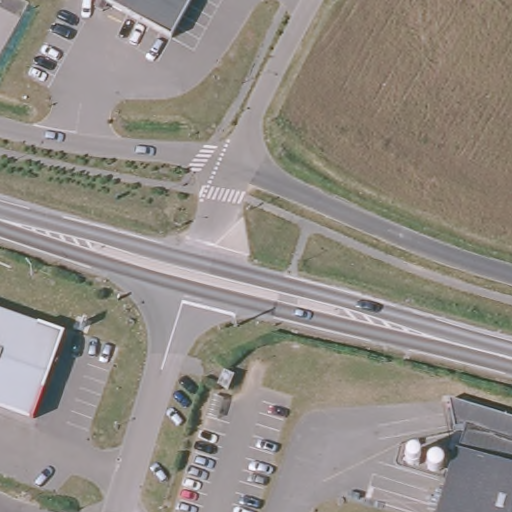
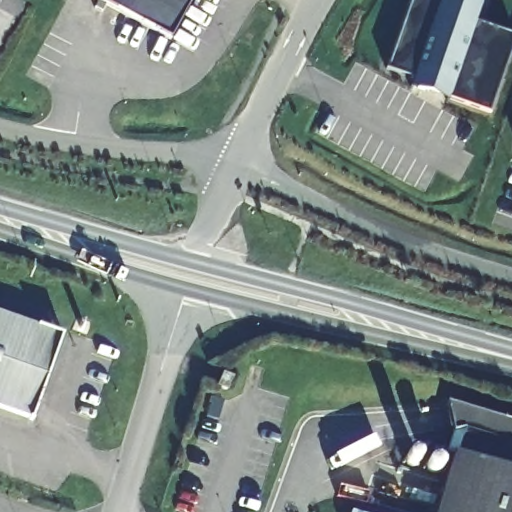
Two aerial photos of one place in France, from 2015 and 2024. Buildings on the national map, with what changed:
unchanged [(170,38),(102,0),(191,0),(170,38)]
new [(403,0),(434,0),(468,9),(464,21),(512,36),(485,108),(388,72),(403,0)]
unchanged [(55,331),(26,416),(0,407),(0,312),(55,331)]
unchanged [(457,453),(463,428),(455,430),(448,401),(512,418),(512,512),(435,512),(453,452),(457,453)]

